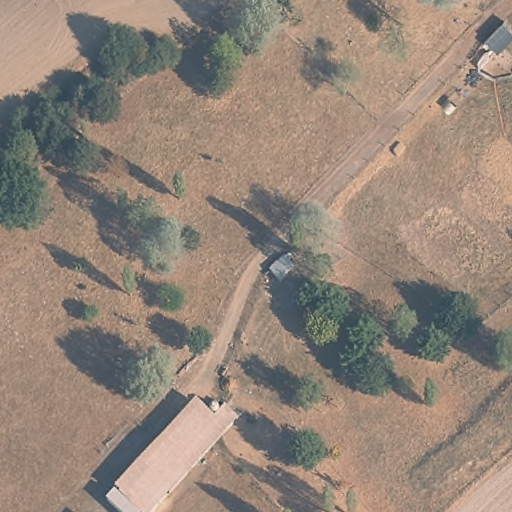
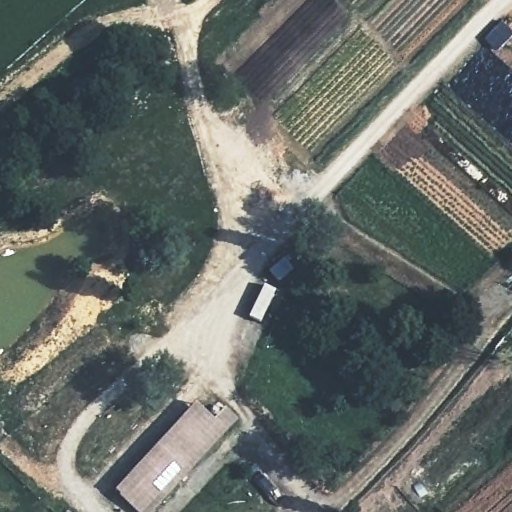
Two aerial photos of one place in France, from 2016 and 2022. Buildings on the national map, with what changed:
unchanged [(153,512),(139,512),(114,489),(195,402),(214,419),(225,407),(239,421),(153,512)]

